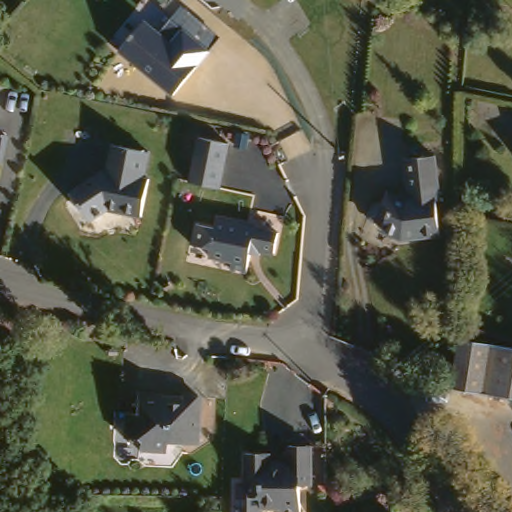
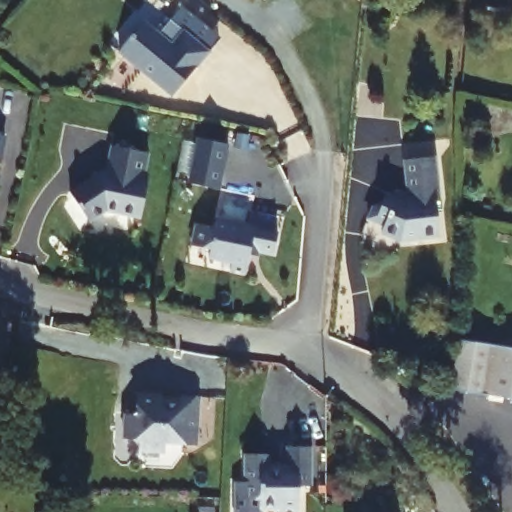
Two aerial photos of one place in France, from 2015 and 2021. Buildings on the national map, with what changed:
unchanged [(139,22),(154,35),(165,20),(204,52),(167,96),(114,52),(139,22)]
unchanged [(4,130),(0,147),(0,129),(4,130)]
unchanged [(218,191),(189,185),(198,140),(228,146),(218,191)]
unchanged [(138,180),(143,181),(135,219),(101,211),(83,222),(64,192),(98,171),(101,171),(107,146),(144,155),(138,180)]
unchanged [(407,199),(404,157),(434,155),(438,200),(435,200),(438,235),(400,238),(380,229),(382,222),(367,215),(372,202),(381,200),(386,190),(407,199)]
unchanged [(190,226),(209,230),(211,220),(241,226),(240,229),(272,235),(267,256),(253,253),(250,249),(245,253),(240,275),(224,271),(225,265),(202,260),(204,251),(185,247),(190,226)]
unchanged [(459,341),(512,349),(512,400),(450,390),(459,341)]
unchanged [(183,405),(184,397),(202,399),(199,445),(167,442),(166,452),(140,450),(141,442),(137,438),(126,437),(127,412),(139,413),(140,392),(165,394),(164,403),(183,405)]
unchanged [(287,458),(287,435),(310,436),(310,475),(300,475),(300,504),(278,504),(278,497),(260,497),(260,512),(233,512),(234,471),(245,471),(245,443),(270,443),(270,458),(287,458)]

